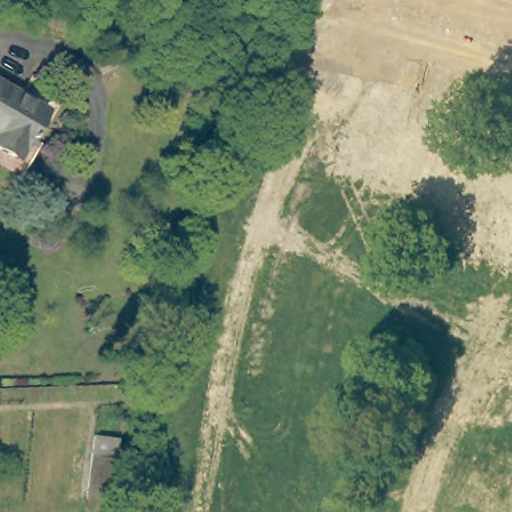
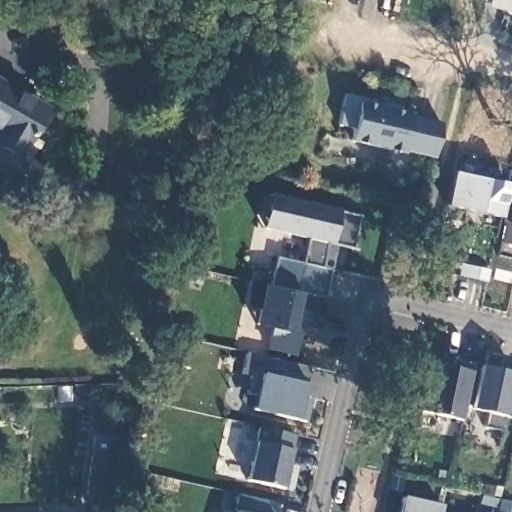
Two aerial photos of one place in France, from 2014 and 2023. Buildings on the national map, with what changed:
new [(506,0),(512,0),(512,6),(505,4),(506,0)]
unchanged [(12,158),(0,151),(0,85),(40,108),(12,158)]
new [(401,105),(399,113),(441,123),(434,158),(405,151),(404,154),(349,141),(352,128),(338,125),(345,92),(401,105)]
new [(508,184),(500,218),(445,205),(453,170),(508,184)]
new [(301,262),(307,238),(266,229),(261,228),(269,195),(269,194),(361,215),(353,247),(358,248),(358,250),(327,243),(322,267),(331,269),(325,298),(269,286),(276,257),(301,262)]
new [(512,217),(512,227),(510,226),(512,217)]
new [(331,269),(322,267),(327,243),(337,245),(331,269)]
new [(269,286),(325,298),(319,330),(294,325),(293,331),(301,331),(294,357),(264,350),(266,328),(250,325),(253,311),(242,305),(245,281),(269,286)]
new [(494,367),(512,371),(512,409),(510,417),(503,415),(500,431),(482,427),(486,412),(470,409),(483,350),(501,355),(494,367)]
new [(312,369),(297,420),(250,410),(253,396),(246,393),(250,376),(240,373),(245,351),(312,369)]
new [(451,367),(453,359),(472,364),(460,420),(421,411),(432,363),(451,367)]
new [(252,460),(240,458),(244,439),(256,441),(259,426),(295,435),(292,450),(289,464),(298,466),(292,489),(283,487),(248,480),(252,460)]
unchanged [(123,500),(108,498),(85,495),(92,435),(115,438),(112,460),(127,462),(123,500)]
new [(234,511),(238,494),(278,503),(276,512),(228,512),(228,510),(234,511)]
new [(440,504),(438,512),(399,512),(402,496),(440,504)]

